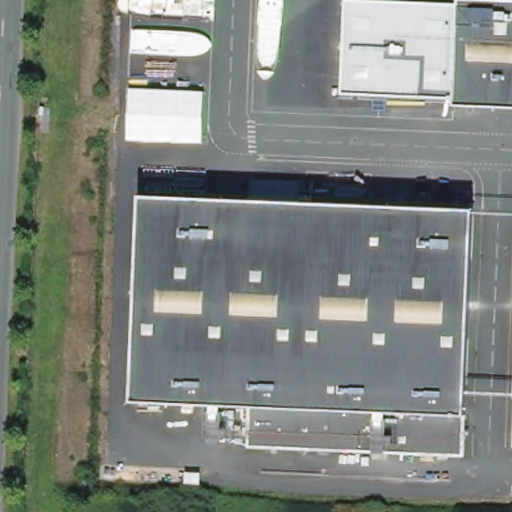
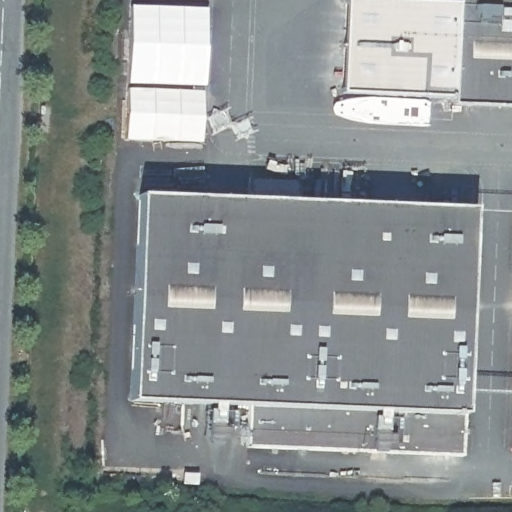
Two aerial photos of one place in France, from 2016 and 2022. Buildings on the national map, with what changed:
unchanged [(455,97),(341,92),(344,0),(401,0),(457,3),(455,97)]
unchanged [(455,107),(457,0),(512,0),(512,109),(455,107)]
new [(207,10),(204,88),(129,85),(131,7),(207,10)]
unchanged [(204,91),(202,142),(125,139),(127,90),(204,91)]
unchanged [(189,403),(129,400),(137,195),(198,197),(247,199),(247,180),(300,182),(299,202),(472,209),(463,414),(247,405),(189,403)]
unchanged [(463,414),(461,459),(245,449),(247,405),(463,414)]
unchanged [(510,447),(512,419),(512,447),(510,447)]

